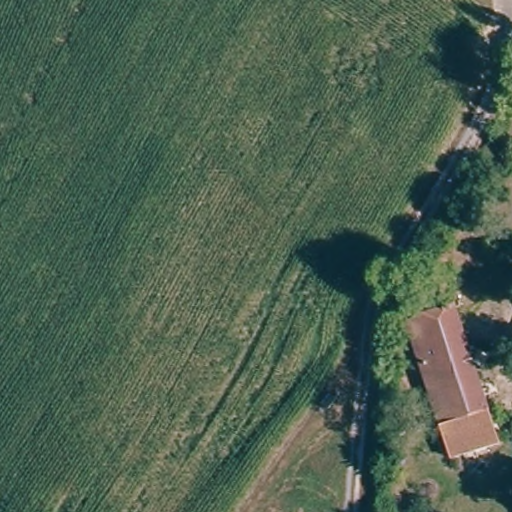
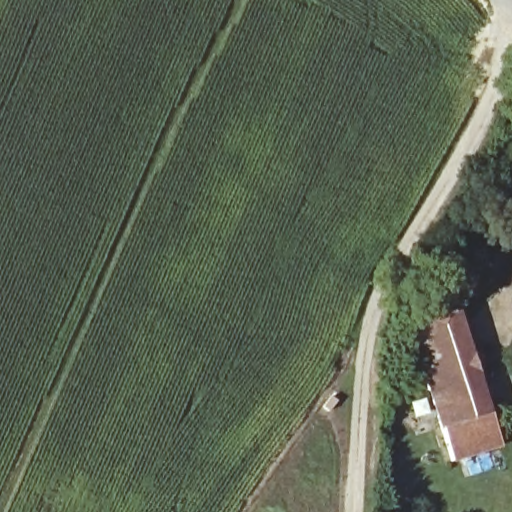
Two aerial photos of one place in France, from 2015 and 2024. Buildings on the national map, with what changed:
unchanged [(457,308),(502,439),(450,457),(406,327),(457,308)]

